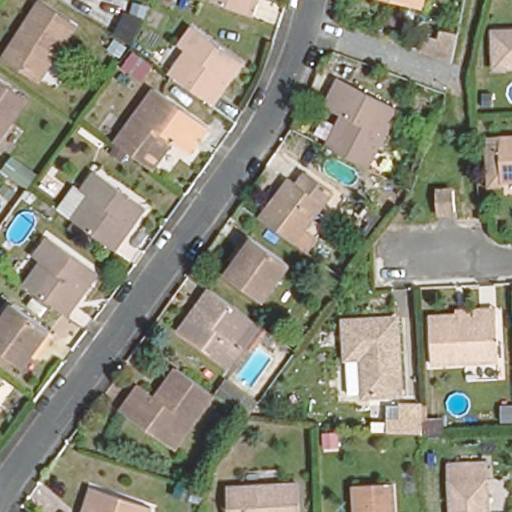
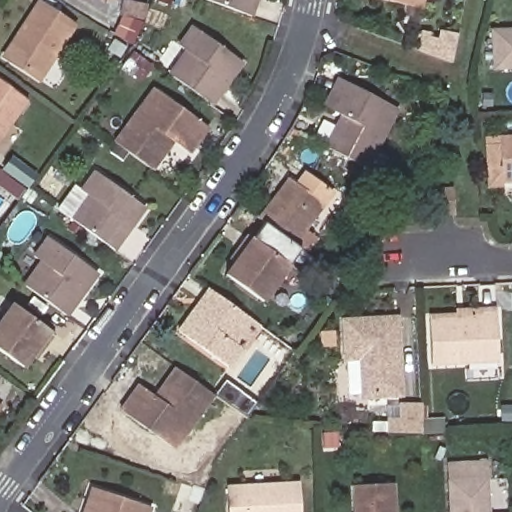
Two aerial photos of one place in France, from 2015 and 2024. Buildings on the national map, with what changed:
unchanged [(208,0),(258,0),(251,17),(208,0)]
unchanged [(416,10),(375,0),(419,0),(416,10)]
unchanged [(82,26),(44,79),(10,54),(49,1),(82,26)]
unchanged [(198,95),(176,80),(170,75),(187,51),(178,45),(192,24),(248,63),(217,109),(198,95)]
unchanged [(449,31),(464,34),(458,63),(425,51),(427,42),(429,32),(436,33),(435,39),(447,41),(449,31)]
unchanged [(496,33),(512,33),(512,71),(497,71),(496,33)]
unchanged [(0,150),(0,76),(35,101),(0,150)]
unchanged [(343,115),(328,107),(342,80),(400,110),(368,172),(325,149),(343,115)]
unchanged [(142,162),(120,146),(161,90),(211,129),(193,155),(176,141),(155,171),(142,162)]
unchanged [(490,186),(491,190),(475,191),(472,148),(488,147),(488,143),(512,142),(512,185),(490,186)]
unchanged [(6,170),(0,166),(0,150),(23,167),(16,177),(6,170)]
unchanged [(63,209),(81,186),(87,191),(103,169),(153,208),(122,251),(78,220),(63,209)]
unchanged [(288,178),(294,182),(301,171),(335,193),(295,247),(275,233),(259,221),(288,178)]
unchanged [(458,191),(458,213),(438,212),(439,191),(458,191)]
unchanged [(26,286),(44,261),(35,254),(49,235),(102,272),(69,316),(26,286)]
unchanged [(300,279),(272,317),(235,292),(243,281),(239,278),(249,264),(259,249),(300,279)]
unchanged [(257,324),(241,347),(246,351),(232,370),(180,332),(209,289),(257,324)]
unchanged [(27,369),(0,351),(0,325),(15,304),(57,336),(48,348),(40,360),(36,357),(27,369)]
unchanged [(485,315),(502,314),(504,361),(437,364),(435,321),(485,319),(485,315)]
unchanged [(353,368),(368,367),(367,359),(352,360),(350,323),(403,320),(406,396),(369,398),(369,395),(354,396),(353,368)]
unchanged [(216,402),(178,455),(123,414),(138,391),(153,402),(175,372),(216,402)]
unchanged [(229,386),(262,410),(250,427),(217,403),(229,386)]
unchanged [(0,403),(8,409),(0,421),(0,403)]
unchanged [(373,424),(386,423),(385,414),(407,412),(422,411),(423,439),(408,439),(374,436),(373,424)]
unchanged [(494,512),(456,512),(454,474),(492,472),(494,512)]
unchanged [(301,478),(304,512),(234,512),(232,482),(301,478)]
unchanged [(392,512),(355,512),(353,490),(391,488),(392,512)]
unchanged [(148,512),(85,512),(92,492),(148,512)]

